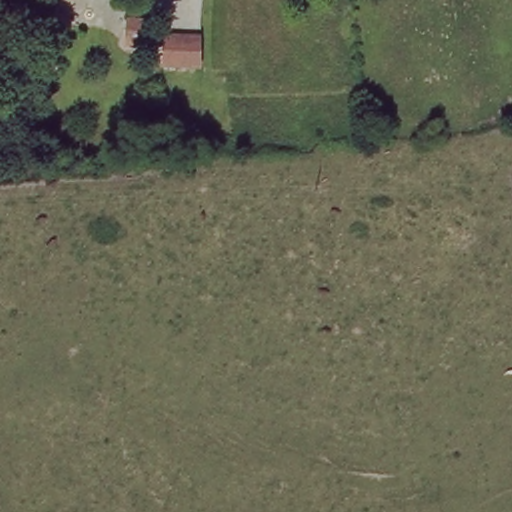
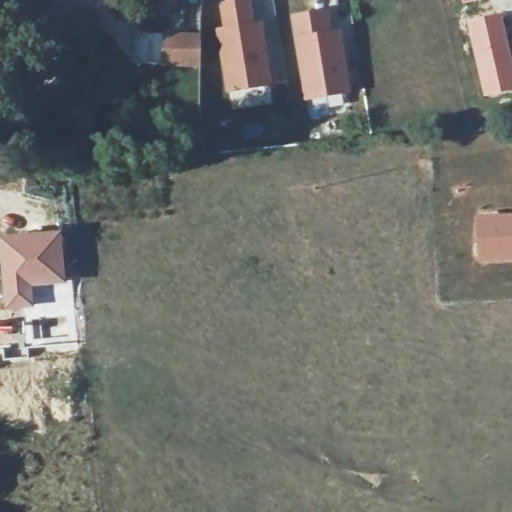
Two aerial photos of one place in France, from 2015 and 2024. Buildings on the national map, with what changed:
new [(260,22),(271,85),(226,92),(215,29),(221,27),(217,0),(250,0),(253,22),(260,22)]
new [(461,0),(476,0),(462,4),(461,0)]
unchanged [(120,35),(105,35),(106,10),(121,10),(120,35)]
new [(328,11),(332,31),(340,30),(350,95),(304,101),(290,16),(328,11)]
new [(512,61),(512,90),(483,97),(465,21),(501,12),(512,61)]
unchanged [(152,54),(140,53),(142,29),(154,30),(152,54)]
unchanged [(197,67),(156,65),(155,30),(199,31),(197,67)]
new [(477,264),(476,217),(512,216),(512,263),(477,264)]
new [(61,230),(66,283),(33,287),(34,307),(3,311),(0,281),(0,233),(61,230)]

